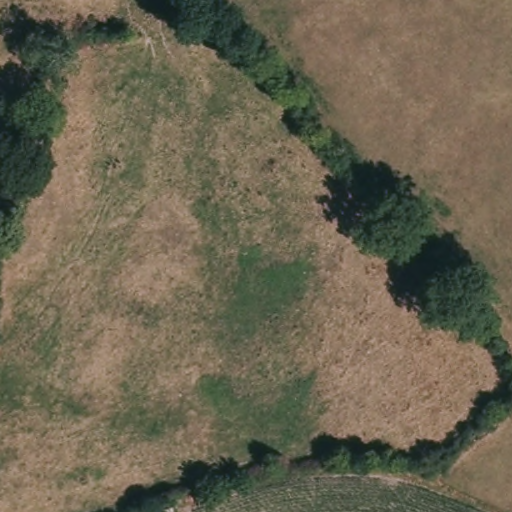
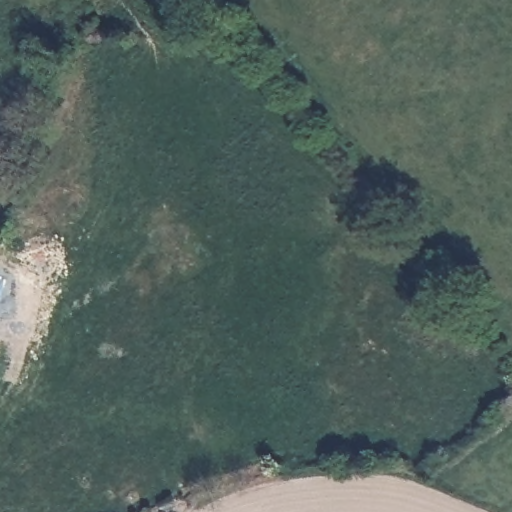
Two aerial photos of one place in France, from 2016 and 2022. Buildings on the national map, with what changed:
[]

